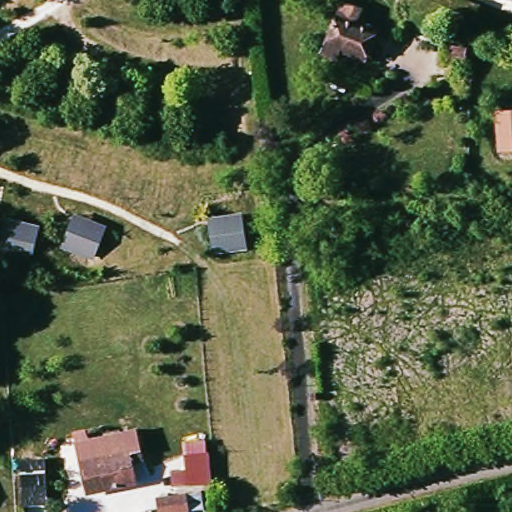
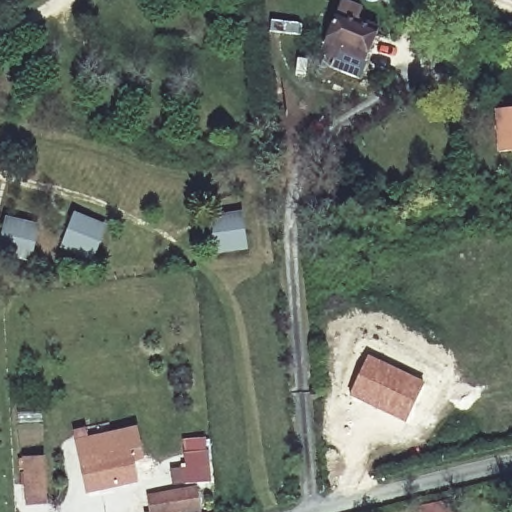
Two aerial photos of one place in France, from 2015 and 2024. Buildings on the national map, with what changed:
unchanged [(364,58),(342,47),(336,58),(316,50),(338,10),(342,1),(362,10),(358,18),(381,28),(364,58)]
unchanged [(467,67),(442,57),(448,42),(473,52),(467,67)]
unchanged [(496,151),(494,111),(512,109),(512,149),(496,151)]
unchanged [(250,250),(211,255),(207,217),(241,212),(250,250)]
unchanged [(105,227),(92,261),(60,246),(72,213),(105,227)]
unchanged [(30,262),(0,254),(0,236),(5,217),(38,224),(30,262)]
new [(368,355),(425,383),(405,424),(349,395),(368,355)]
new [(187,485),(186,469),(184,442),(203,441),(205,467),(206,483),(187,485)]
unchanged [(138,481),(91,487),(87,457),(116,453),(150,449),(151,463),(136,465),(138,481)]
unchanged [(51,502),(25,504),(21,461),(47,459),(51,502)]
unchanged [(188,490),(191,512),(161,512),(158,495),(188,490)]
unchanged [(419,505),(443,499),(446,512),(411,512),(410,507),(419,505)]

